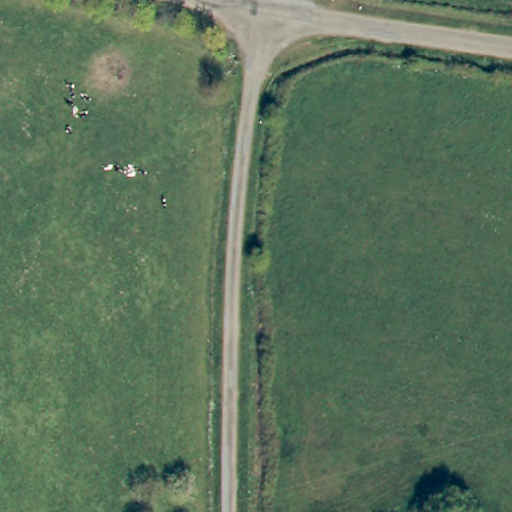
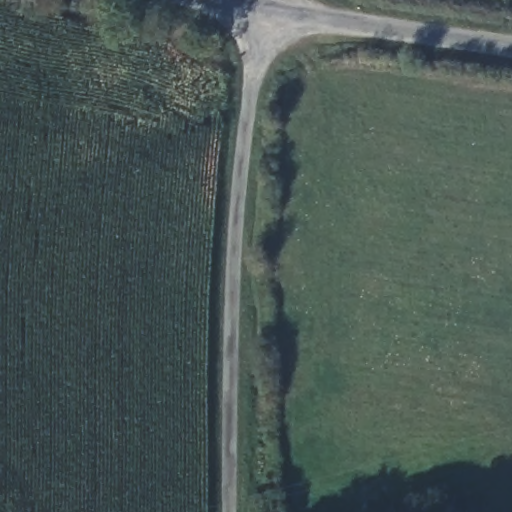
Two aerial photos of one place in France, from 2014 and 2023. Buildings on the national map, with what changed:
[]

